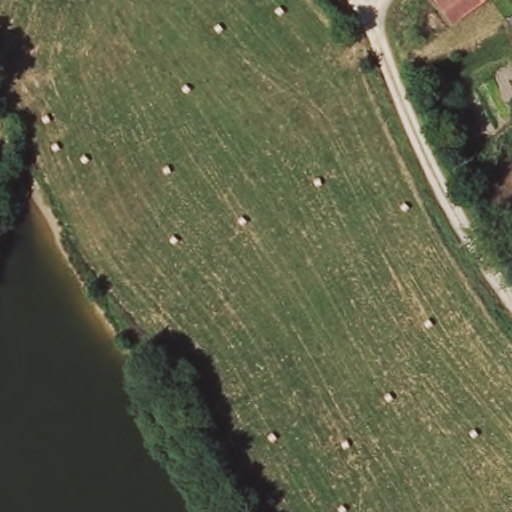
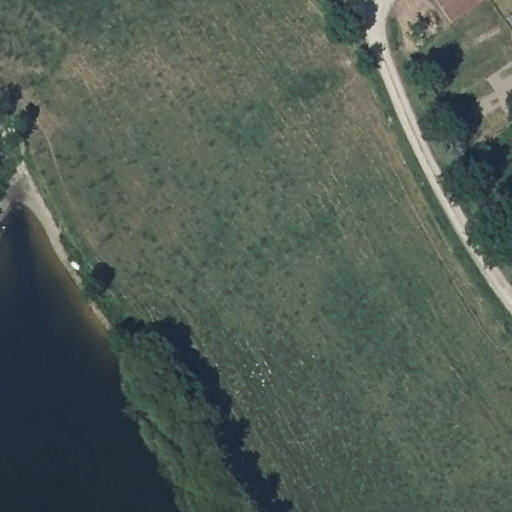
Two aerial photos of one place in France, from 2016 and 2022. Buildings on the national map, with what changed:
unchanged [(432,0),(483,0),(451,25),(432,0)]

